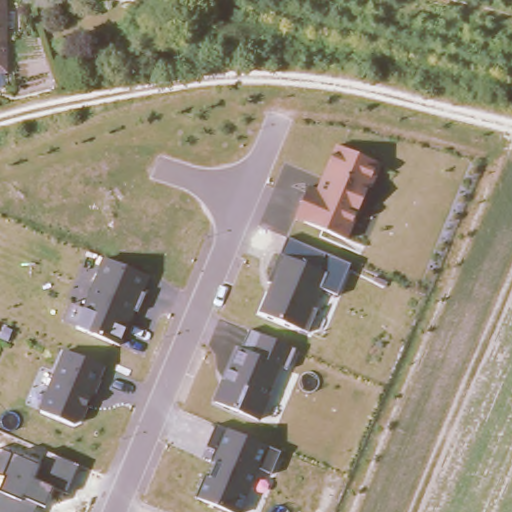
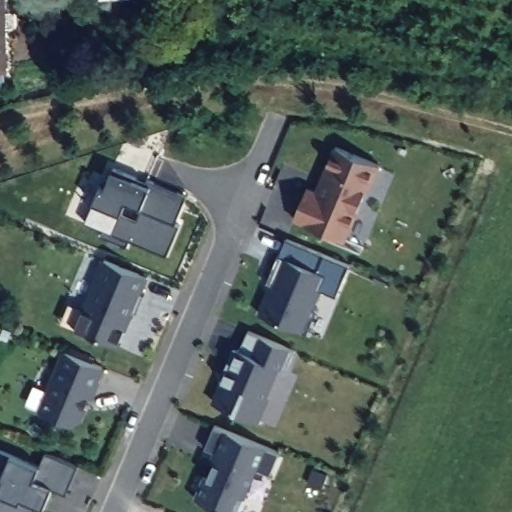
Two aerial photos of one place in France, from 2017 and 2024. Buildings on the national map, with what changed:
unchanged [(0,69),(0,0),(3,0),(5,69),(0,69)]
unchanged [(378,165),(346,242),(296,219),(309,185),(317,189),(336,147),(378,165)]
new [(183,196),(171,224),(176,226),(164,257),(126,241),(124,247),(98,236),(101,231),(82,221),(98,186),(100,186),(104,177),(106,177),(110,167),(183,196)]
unchanged [(347,266),(335,296),(321,288),(314,308),(317,311),(308,333),(258,312),(271,285),(267,283),(286,237),(347,266)]
unchanged [(64,320),(70,305),(86,308),(107,259),(145,276),(137,292),(145,295),(137,313),(131,308),(118,343),(64,320)]
unchanged [(294,351),(286,371),(280,367),(268,396),(270,398),(260,422),(213,402),(230,363),(228,361),(235,347),(241,347),(248,331),(294,351)]
unchanged [(80,427),(40,410),(65,351),(102,369),(80,427)]
unchanged [(195,498),(205,477),(210,480),(216,463),(211,458),(215,449),(208,447),(216,427),(278,454),(270,476),(257,468),(240,512),(231,512),(195,498)]
unchanged [(0,477),(0,449),(41,466),(35,481),(53,489),(45,510),(38,507),(36,512),(0,512),(0,491),(5,479),(0,477)]

